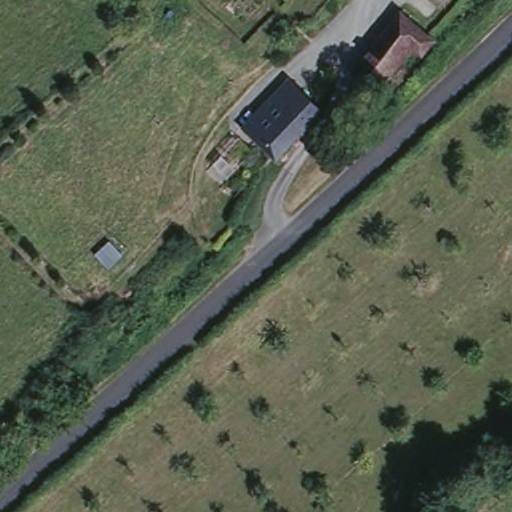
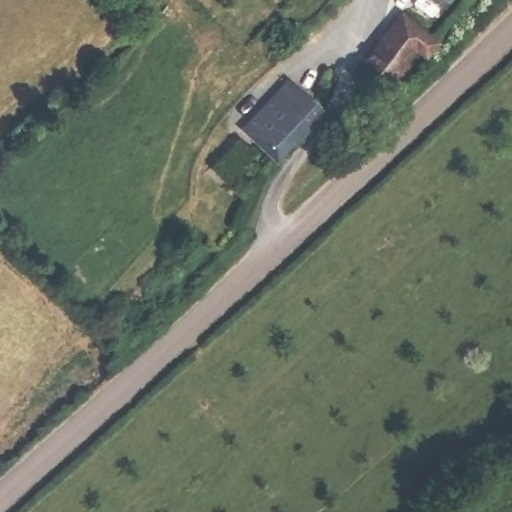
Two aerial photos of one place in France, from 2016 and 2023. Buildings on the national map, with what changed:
unchanged [(385,32),(395,20),(419,36),(429,45),(419,59),(410,52),(377,93),(352,75),(385,32)]
unchanged [(289,80),(321,111),(315,120),(277,160),(243,129),(289,80)]

